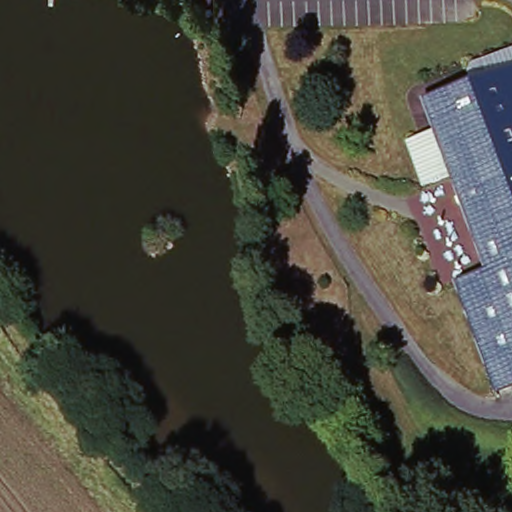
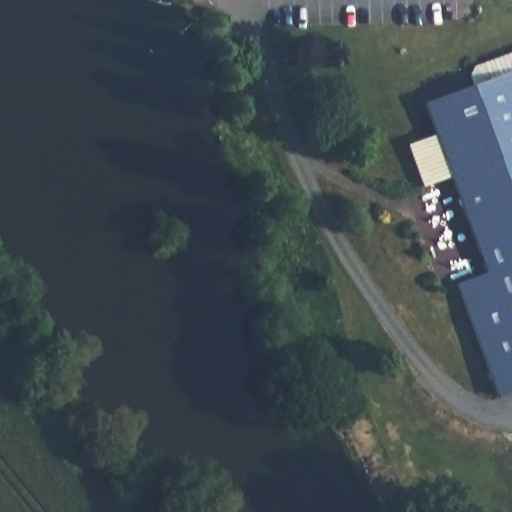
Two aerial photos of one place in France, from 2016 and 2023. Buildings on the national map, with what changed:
unchanged [(198,2),(206,13),(198,19),(193,11),(190,7),(198,2)]
unchanged [(493,274),(456,179),(425,190),(411,147),(439,138),(428,105),(476,88),(473,78),(477,69),(512,57),(512,398),(504,401),(493,373),(458,285),(493,274)]

